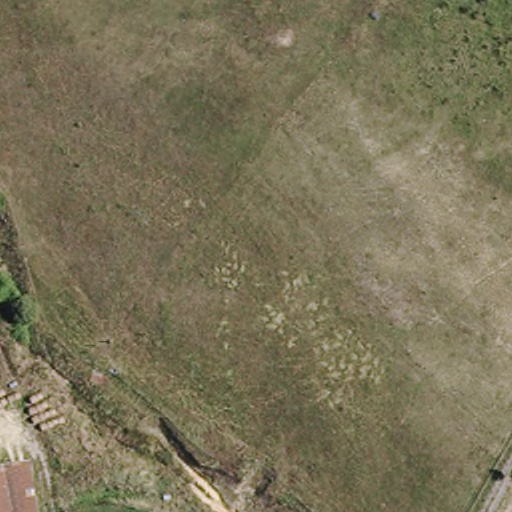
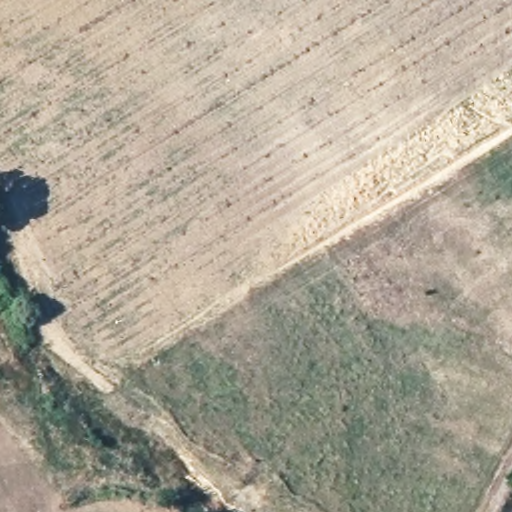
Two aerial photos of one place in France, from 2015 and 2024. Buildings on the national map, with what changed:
demolished [(36,512),(0,512),(0,474),(31,470),(36,512)]

